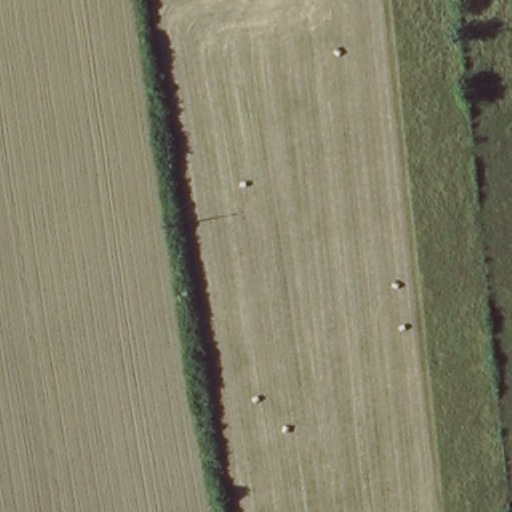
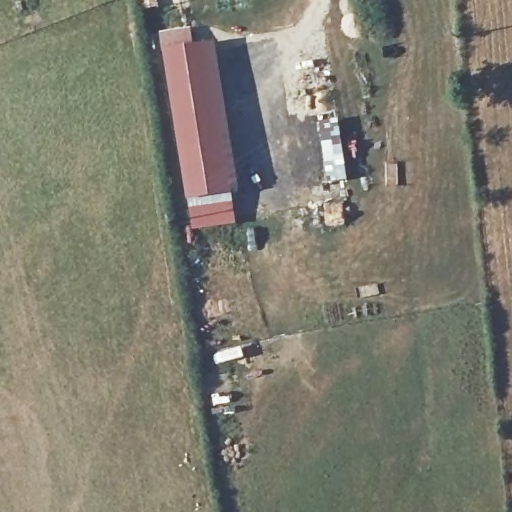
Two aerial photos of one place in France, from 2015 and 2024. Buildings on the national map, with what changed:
new [(233,197),(236,225),(193,230),(188,202),(163,53),(161,35),(191,29),(195,48),(208,45),(233,197)]

